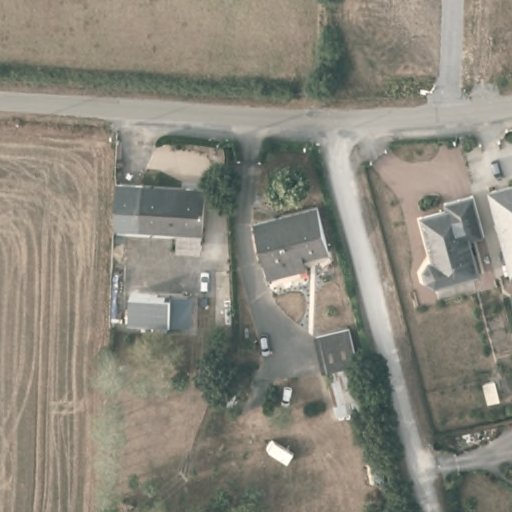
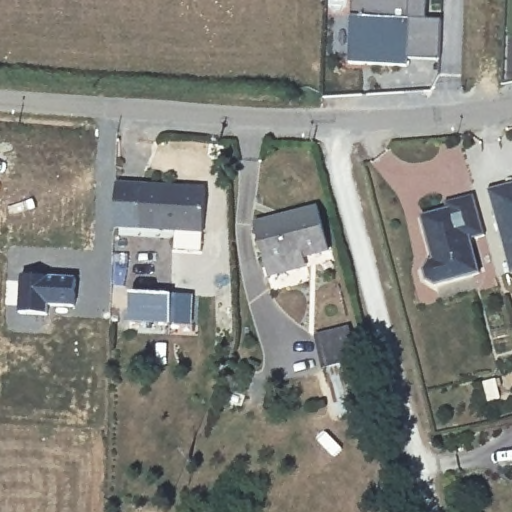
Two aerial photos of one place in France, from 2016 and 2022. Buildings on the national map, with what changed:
new [(425,19),(439,20),(438,60),(406,59),(405,66),(348,64),(350,16),(351,0),(426,0),(425,19)]
unchanged [(488,184),(512,177),(512,265),(510,265),(488,184)]
unchanged [(144,180),(144,186),(188,188),(188,182),(208,183),(207,225),(116,221),(117,179),(144,180)]
unchanged [(483,232),(469,235),(477,267),(435,279),(426,272),(424,260),(428,256),(426,246),(430,244),(427,229),(422,230),(419,213),(444,205),(441,196),(472,189),(483,232)]
unchanged [(330,251),(266,265),(257,221),(319,209),(330,251)]
demolished [(205,266),(232,266),(229,320),(203,319),(205,266)]
unchanged [(132,290),(194,292),(194,326),(161,326),(132,325),(132,290)]
unchanged [(327,371),(314,335),(352,322),(363,355),(378,398),(356,406),(341,412),(327,371)]

